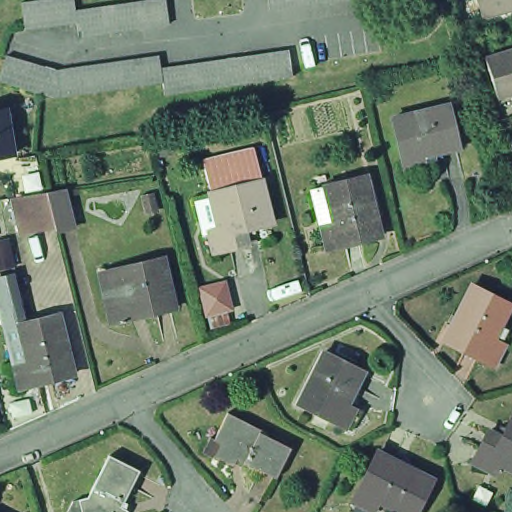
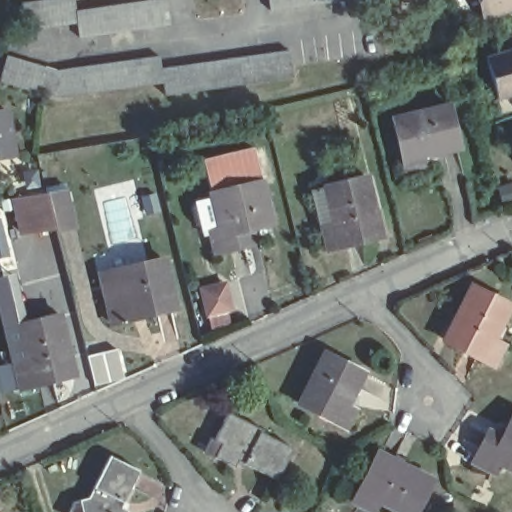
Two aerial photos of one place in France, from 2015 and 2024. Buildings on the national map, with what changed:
unchanged [(30,29),(26,2),(41,0),(78,0),(80,10),(148,0),(168,0),(172,24),(83,36),(81,21),(30,29)]
unchanged [(270,0),(346,0),(271,10),(270,0)]
unchanged [(512,6),(489,14),(485,0),(512,0),(512,6)]
unchanged [(7,55),(56,69),(160,55),(161,67),(288,50),(293,77),(165,95),(164,83),(62,97),(31,90),(0,80),(0,78),(7,55)]
unchanged [(485,60),(512,52),(512,95),(495,100),(485,60)]
unchanged [(445,105),(455,147),(431,154),(430,150),(422,152),(425,165),(401,170),(390,118),(445,105)]
unchanged [(9,150),(0,152),(0,107),(3,107),(9,150)]
unchanged [(201,158),(250,146),(259,180),(208,192),(201,158)]
unchanged [(383,234),(331,246),(325,225),(316,186),(327,185),(369,175),(383,234)]
unchanged [(268,222),(240,229),(244,242),(210,251),(206,215),(213,214),(208,192),(259,180),(268,222)]
unchanged [(14,200),(55,191),(62,226),(22,235),(14,200)]
unchanged [(172,307),(109,321),(103,296),(97,272),(105,270),(161,258),(172,307)]
unchanged [(0,314),(0,275),(16,272),(26,322),(15,325),(23,361),(11,364),(0,314)]
unchanged [(200,285),(227,280),(233,308),(205,315),(200,285)]
unchanged [(487,339),(497,345),(486,366),(438,340),(466,287),(505,306),(487,339)]
unchanged [(78,379),(17,392),(11,364),(23,361),(15,325),(26,322),(63,312),(78,379)]
unchanged [(346,403),(355,408),(345,428),(296,403),(322,353),(360,373),(346,403)]
unchanged [(276,478),(237,458),(234,465),(214,455),(220,442),(214,439),(228,411),(264,430),(263,433),(290,448),(276,478)]
unchanged [(475,463),(490,432),(503,439),(512,423),(512,468),(498,461),(493,470),(475,463)]
unchanged [(416,512),(381,495),(376,505),(356,495),(380,447),(434,475),(416,512)]
unchanged [(121,507),(127,510),(126,512),(81,512),(78,498),(87,497),(107,455),(139,470),(121,507)]

